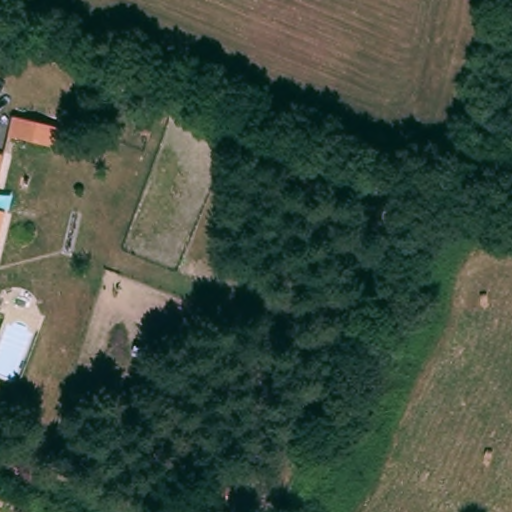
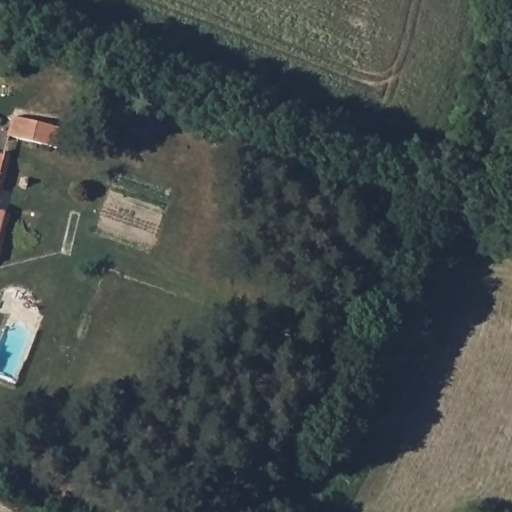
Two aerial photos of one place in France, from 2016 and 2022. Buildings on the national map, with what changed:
unchanged [(16,110),(64,122),(58,141),(10,127),(16,110)]
unchanged [(11,158),(1,192),(0,192),(0,156),(11,158)]
unchanged [(8,214),(0,243),(0,213),(8,214)]

